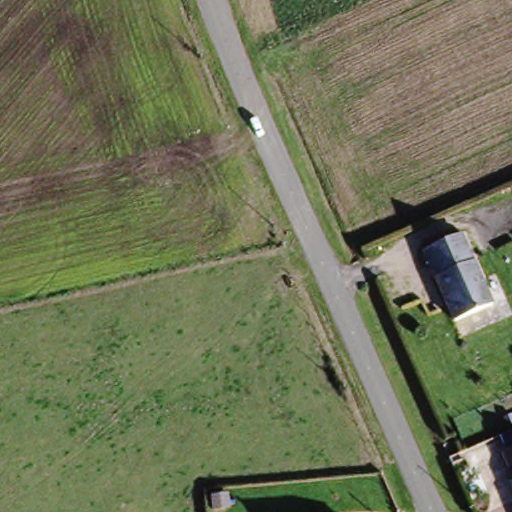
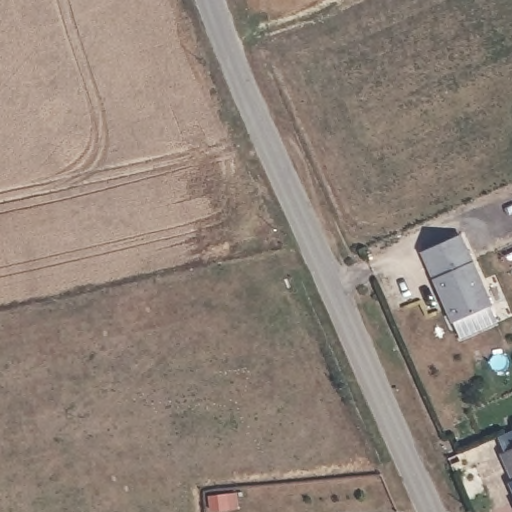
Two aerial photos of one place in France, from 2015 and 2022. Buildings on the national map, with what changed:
unchanged [(462,237),(489,304),(453,318),(426,252),(462,237)]

